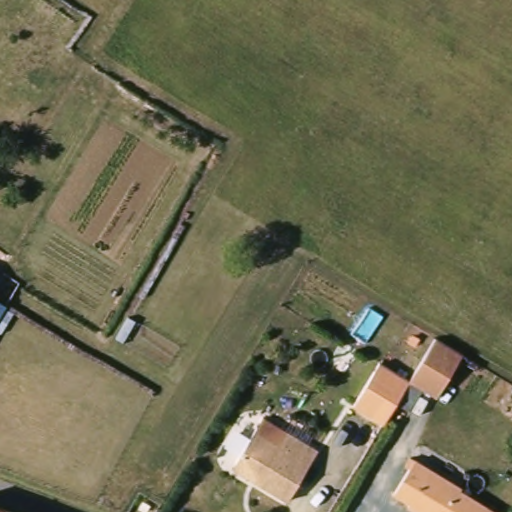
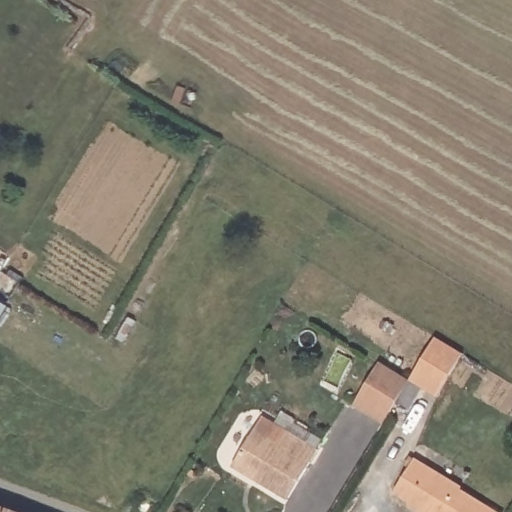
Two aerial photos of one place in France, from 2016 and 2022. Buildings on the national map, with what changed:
unchanged [(435,339),(462,356),(436,400),(409,381),(435,339)]
unchanged [(383,424),(354,406),(379,363),(409,381),(383,424)]
unchanged [(234,457),(250,431),(273,444),(281,431),(314,451),(287,496),(254,476),(231,462),(234,457)]
unchanged [(409,502),(392,492),(407,467),(403,464),(408,456),(412,458),(459,486),(457,489),(495,512),(419,512),(407,504),(409,502)]
unchanged [(11,512),(0,512),(0,508),(11,512)]

